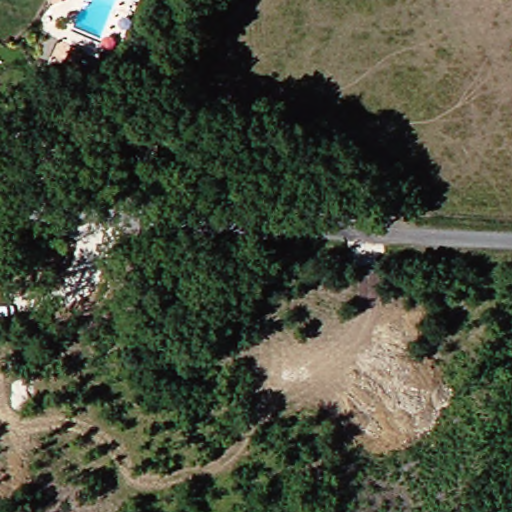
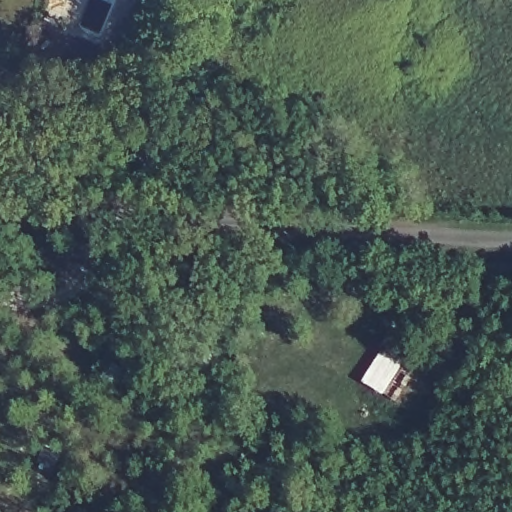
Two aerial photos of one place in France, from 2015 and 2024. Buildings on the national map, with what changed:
unchanged [(165,149),(151,180),(121,166),(134,136),(165,149)]

